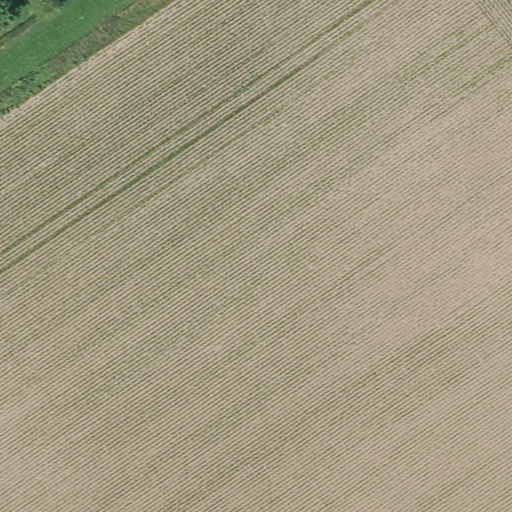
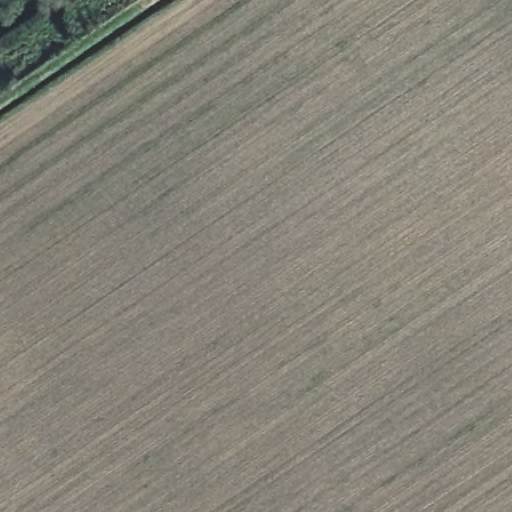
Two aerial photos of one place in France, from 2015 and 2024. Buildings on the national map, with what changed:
[]

